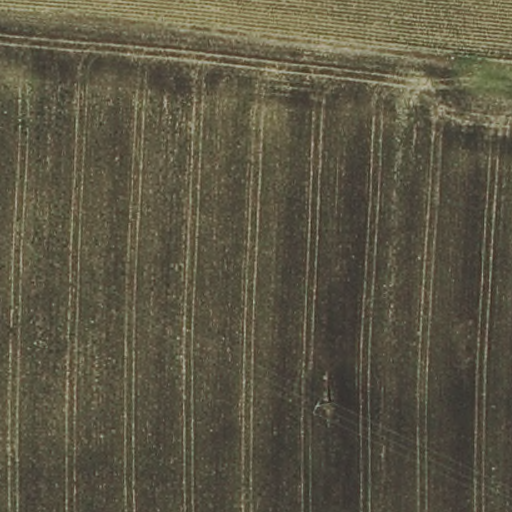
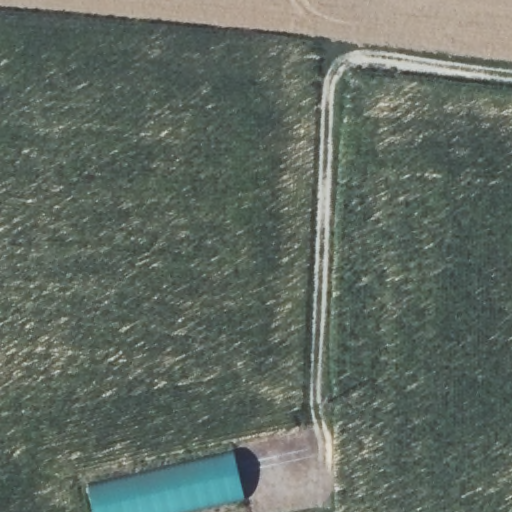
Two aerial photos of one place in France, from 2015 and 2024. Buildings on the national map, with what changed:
new [(233,453),(245,501),(195,512),(93,512),(88,488),(233,453)]

